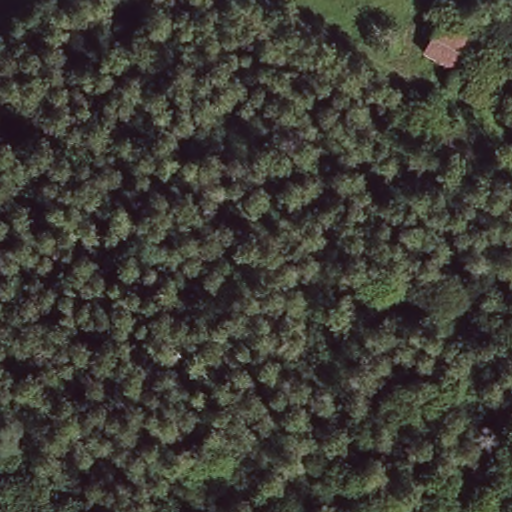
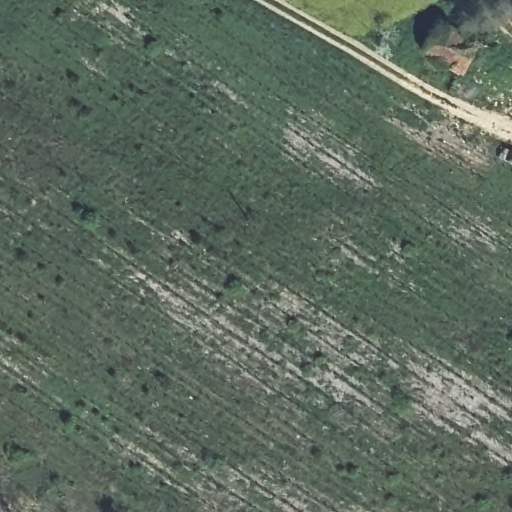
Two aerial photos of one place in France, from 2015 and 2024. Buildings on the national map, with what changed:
unchanged [(480,39),(462,70),(428,52),(442,17),(480,39)]

